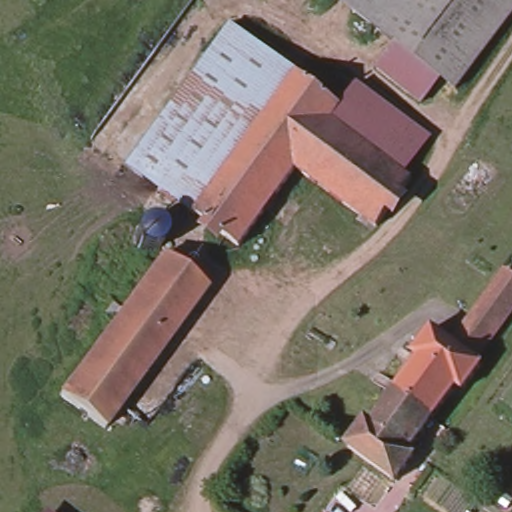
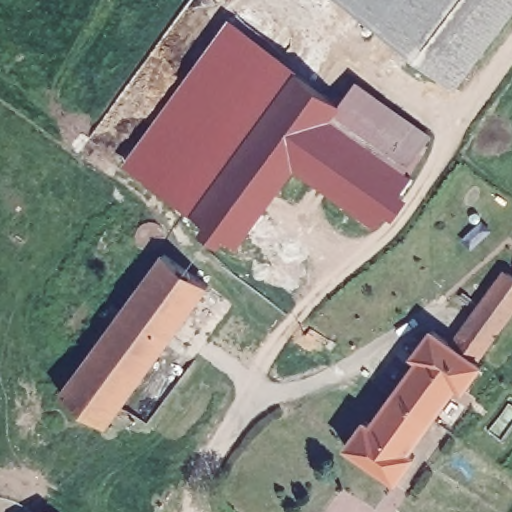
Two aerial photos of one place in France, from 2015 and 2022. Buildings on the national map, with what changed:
unchanged [(440,79),(421,105),(377,69),(395,41),(346,0),(361,0),(464,81),(457,91),(440,79)]
unchanged [(512,0),(512,13),(464,81),(361,0),(512,0)]
unchanged [(236,249),(125,161),(230,20),(337,105),(353,75),(430,130),(404,167),(415,176),(402,189),(409,197),(398,219),(387,210),(375,224),(297,167),(236,249)]
unchanged [(62,387),(160,250),(206,283),(107,420),(62,387)]
unchanged [(498,270),(512,279),(512,309),(475,361),(448,342),(498,270)]
unchanged [(388,392),(417,352),(410,347),(426,326),(448,342),(475,361),(482,366),(466,390),(458,384),(432,422),(388,392)]
unchanged [(412,452),(417,456),(398,482),(393,478),(388,485),(343,452),(349,445),(343,440),(362,414),(368,418),(388,392),(432,422),(412,452)]
unchanged [(52,512),(40,512),(45,506),(52,512)]

